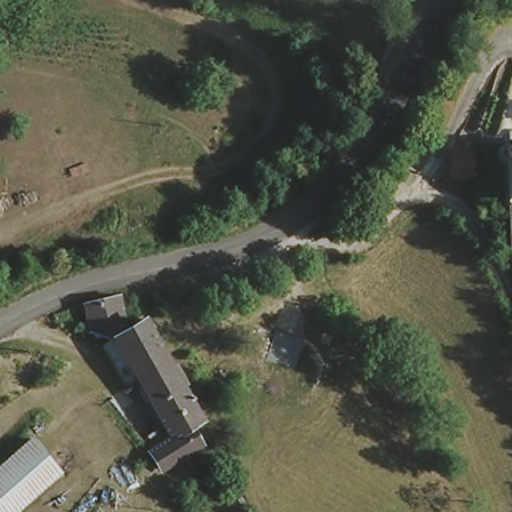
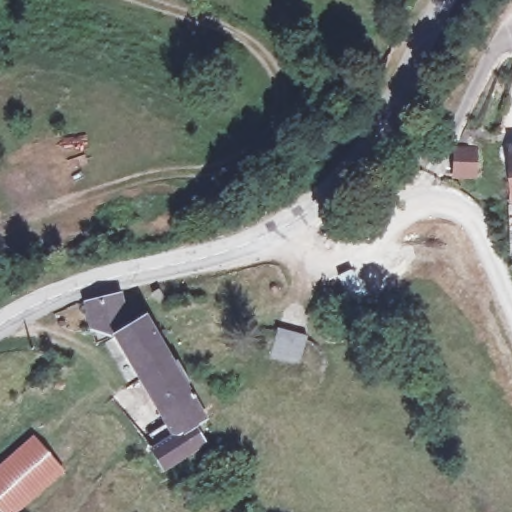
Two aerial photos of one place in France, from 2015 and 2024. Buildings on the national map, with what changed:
unchanged [(512,201),(509,146),(512,145),(512,201)]
unchanged [(477,180),(454,181),(454,150),(477,150),(477,180)]
unchanged [(113,302),(115,322),(98,325),(97,307),(113,302)]
unchanged [(117,338),(143,324),(164,361),(138,376),(117,338)]
unchanged [(161,471),(149,454),(174,440),(164,420),(161,415),(141,379),(138,376),(164,361),(190,406),(201,425),(189,432),(199,449),(161,471)]
unchanged [(4,512),(0,512),(0,463),(42,438),(64,476),(4,512)]

